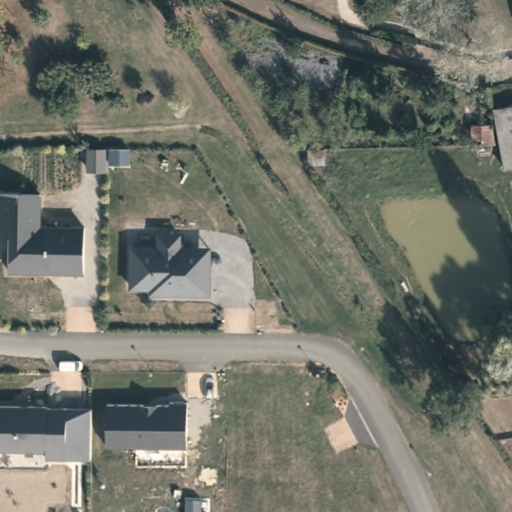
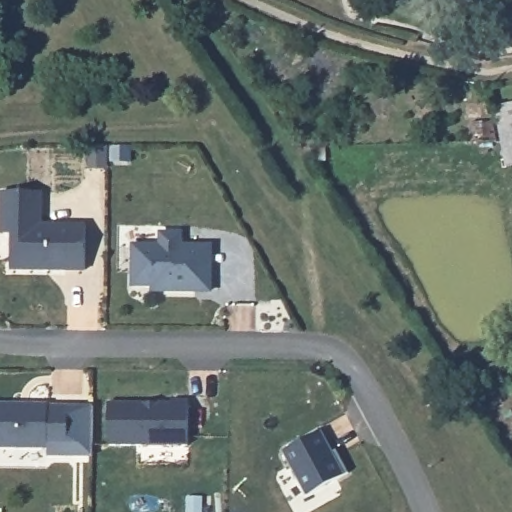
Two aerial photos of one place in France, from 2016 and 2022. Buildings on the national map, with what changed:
unchanged [(493,107),(512,103),(512,164),(505,165),(493,107)]
unchanged [(11,271),(11,232),(0,232),(0,192),(40,191),(40,226),(86,226),(86,270),(11,271)]
unchanged [(150,291),(150,285),(133,285),(134,245),(162,244),(162,232),(186,230),(186,244),(213,243),(213,290),(150,291)]
unchanged [(107,401),(170,402),(170,397),(187,397),(187,445),(107,446),(107,401)]
unchanged [(47,458),(48,449),(0,449),(0,405),(73,405),(71,456),(47,458)]
new [(319,431),(343,475),(305,495),(281,451),(319,431)]

